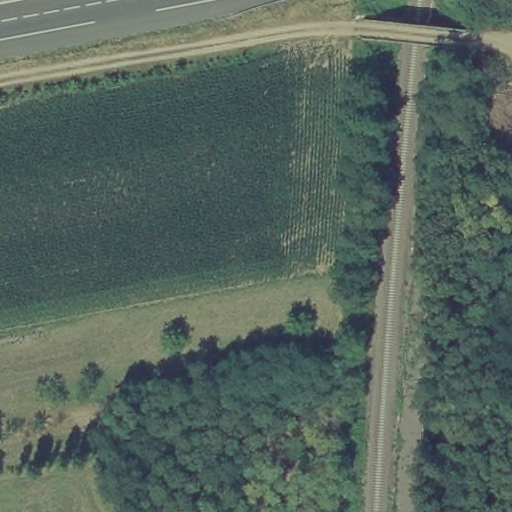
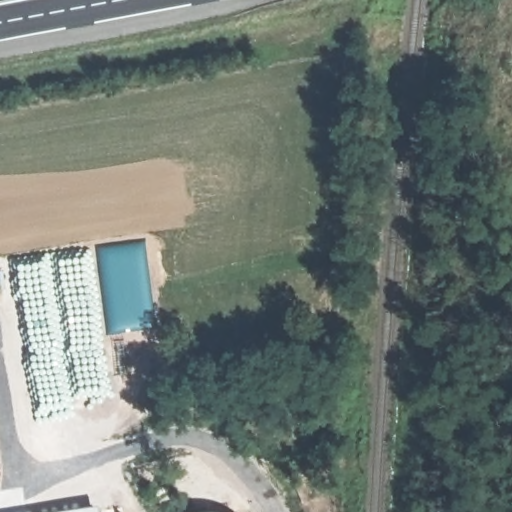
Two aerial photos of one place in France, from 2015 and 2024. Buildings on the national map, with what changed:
new [(99,507),(100,512),(63,512),(99,507)]

